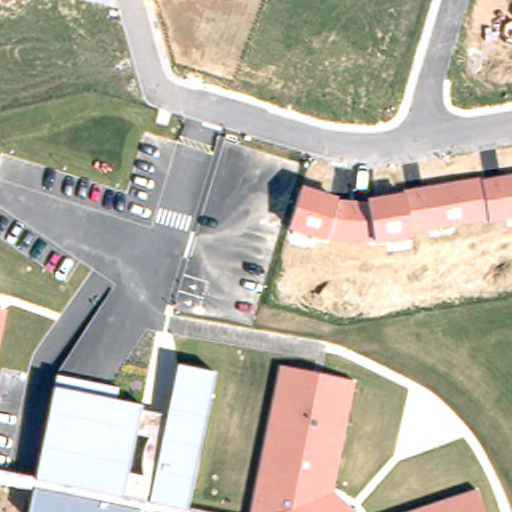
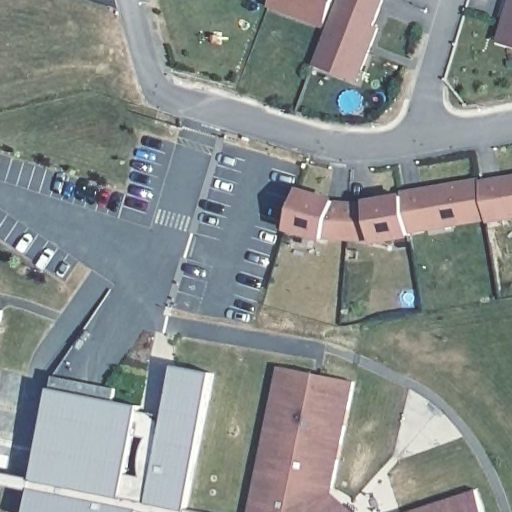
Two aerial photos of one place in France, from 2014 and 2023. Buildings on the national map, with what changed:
new [(269,7),(272,0),(335,0),(324,28),(269,7)]
new [(380,28),(359,81),(315,66),(339,0),(385,0),(376,26),(380,28)]
unchanged [(502,39),(512,4),(512,43),(502,39)]
unchanged [(337,199),(337,202),(366,203),(366,198),(402,193),(402,190),(480,178),(481,182),(512,176),(512,219),(489,223),(487,221),(410,234),(410,238),(367,244),(325,238),(323,243),(287,232),(300,188),(337,199)]
unchanged [(0,347),(0,309),(7,310),(0,347)]
unchanged [(277,362),(357,379),(335,495),(355,512),(248,512),(277,362)]
unchanged [(117,399),(145,404),(144,412),(166,414),(176,363),(218,370),(192,507),(215,512),(27,512),(31,490),(0,485),(0,469),(38,476),(57,376),(121,386),(117,399)]
unchanged [(479,490),(486,512),(410,512),(479,490)]

